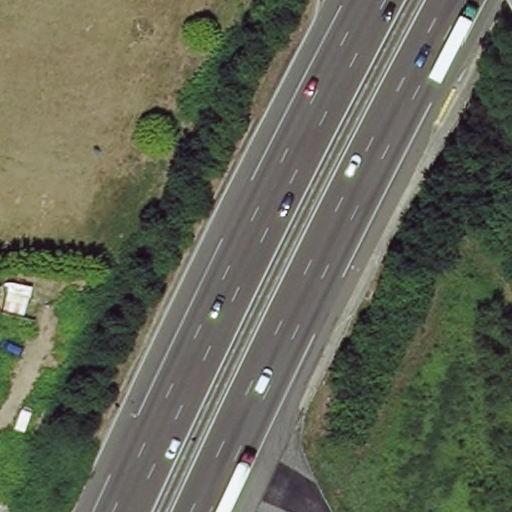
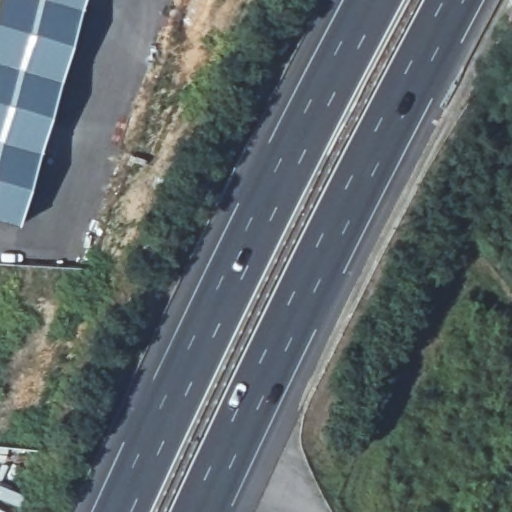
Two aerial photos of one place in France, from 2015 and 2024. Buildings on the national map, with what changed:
new [(0,0),(84,0),(19,225),(0,220),(0,0)]

